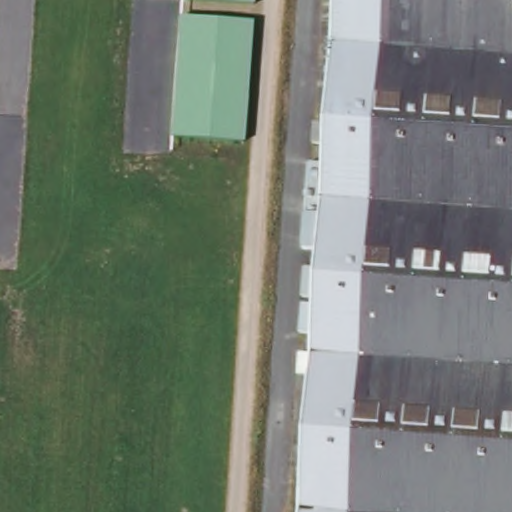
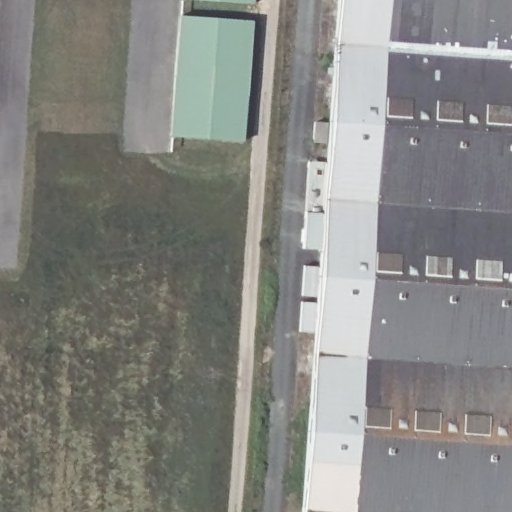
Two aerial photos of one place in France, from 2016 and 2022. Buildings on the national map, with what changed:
unchanged [(254,0),(254,5),(188,0),(254,0)]
unchanged [(337,0),(512,0),(512,512),(301,512),(337,0)]
unchanged [(181,16),(252,22),(244,143),(174,139),(181,16)]

